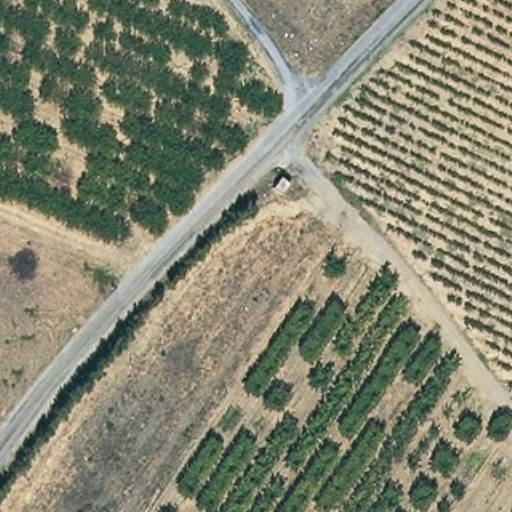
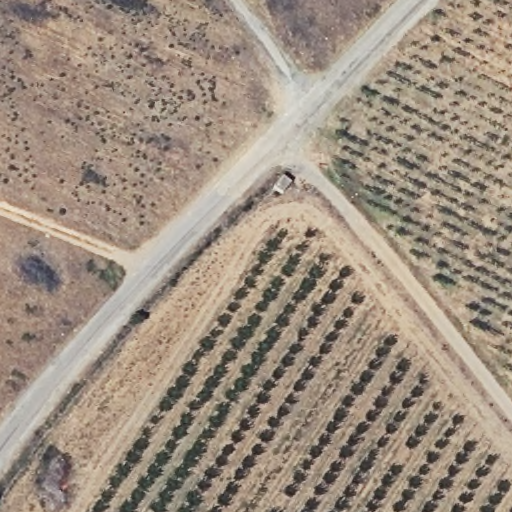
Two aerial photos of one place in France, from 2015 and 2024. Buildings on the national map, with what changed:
unchanged [(289,180),(280,192),(269,183),(279,174),(289,180)]

